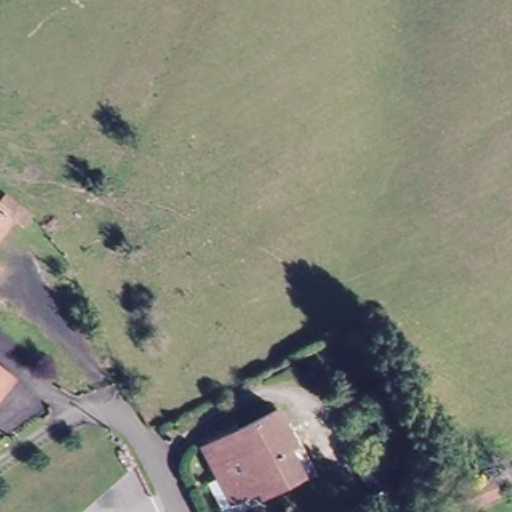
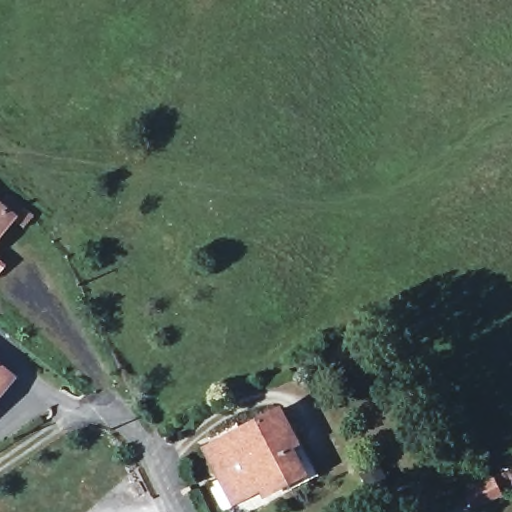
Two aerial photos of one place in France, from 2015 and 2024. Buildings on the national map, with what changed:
unchanged [(6,197),(32,218),(23,229),(10,219),(0,231),(0,204),(6,197)]
unchanged [(3,268),(0,272),(0,265),(3,268)]
unchanged [(14,379),(0,396),(0,397),(0,367),(14,379)]
unchanged [(253,488),(242,494),(245,498),(218,512),(204,485),(214,480),(199,452),(207,448),(206,445),(273,411),(288,441),(293,438),(308,468),(271,487),(256,495),(253,488)]
unchanged [(499,497),(474,509),(466,492),(491,480),(499,497)]

